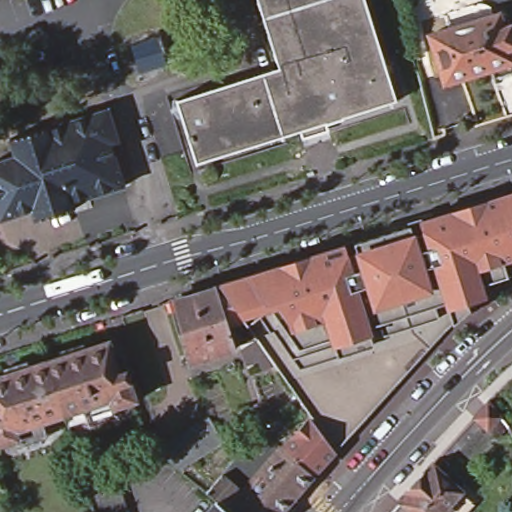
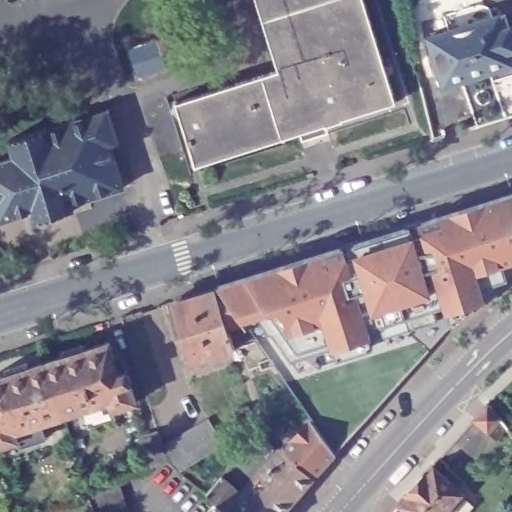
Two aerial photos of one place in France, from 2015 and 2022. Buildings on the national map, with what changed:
unchanged [(363,0),(393,98),(195,160),(176,98),(276,67),(255,0),(363,0)]
unchanged [(509,12),(512,24),(512,75),(494,80),(491,70),(446,83),(430,33),(503,13),(504,14),(509,12)]
unchanged [(153,39),(161,64),(136,72),(128,47),(153,39)]
unchanged [(109,107),(120,140),(112,143),(126,183),(76,201),(78,208),(73,210),(72,208),(42,218),(43,220),(38,222),(34,211),(1,222),(0,219),(0,164),(16,158),(10,141),(109,107)]
unchanged [(417,219),(512,189),(512,261),(503,264),(507,275),(483,282),(486,295),(467,303),(470,307),(452,322),(445,301),(437,304),(440,315),(382,334),(377,322),(369,324),(371,332),(374,344),(337,354),(297,365),(261,314),(251,320),(221,281),(342,243),(417,219)]
unchanged [(216,284),(241,320),(227,325),(234,348),(187,362),(167,300),(216,284)]
unchanged [(62,355),(60,349),(85,341),(86,347),(108,340),(119,372),(125,370),(135,400),(111,408),(109,401),(64,415),(47,360),(62,355)]
unchanged [(17,431),(20,439),(0,445),(0,375),(6,373),(5,368),(30,360),(32,365),(47,360),(64,415),(17,431)]
unchanged [(486,401),(505,426),(495,435),(471,416),(485,400),(486,401)]
unchanged [(162,442),(208,414),(224,439),(178,468),(167,458),(149,464),(140,435),(159,429),(162,442)]
unchanged [(215,501),(205,492),(219,476),(239,494),(309,416),(333,449),(277,512),(205,512),(215,501)]
unchanged [(459,490),(439,512),(412,512),(397,497),(430,462),(459,490)]
unchanged [(95,510),(90,497),(86,483),(114,474),(118,487),(122,500),(125,512),(95,512),(95,510)]

